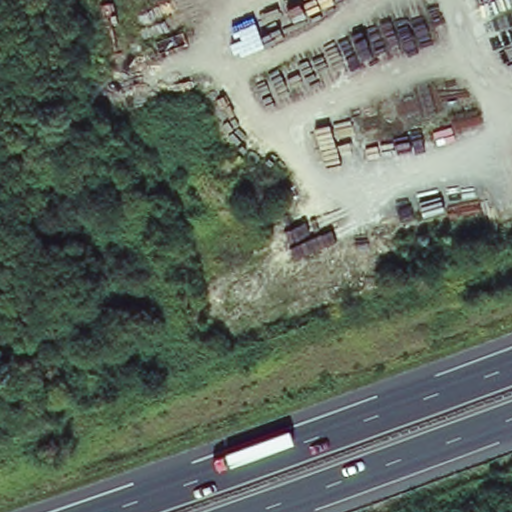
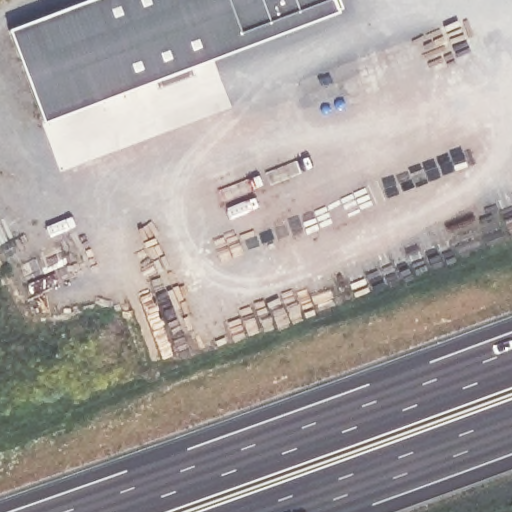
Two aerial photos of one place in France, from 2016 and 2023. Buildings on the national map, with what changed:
new [(85,0),(332,0),(336,10),(39,118),(7,29),(85,0)]

